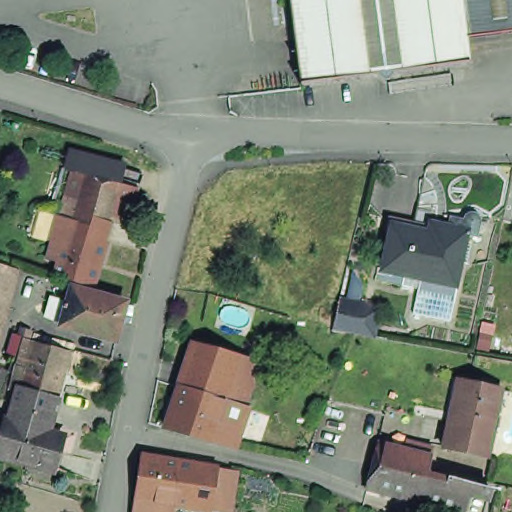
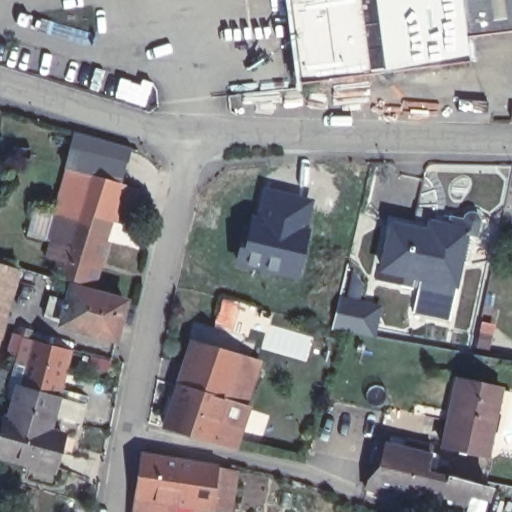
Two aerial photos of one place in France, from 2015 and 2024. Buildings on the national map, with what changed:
unchanged [(293,78),(283,0),(295,0),(306,77),(293,78)]
unchanged [(381,0),(383,78),(377,69),(306,77),(295,0),(381,0)]
unchanged [(468,55),(395,66),(383,78),(381,0),(461,0),(465,31),(468,55)]
unchanged [(461,0),(512,0),(512,25),(465,31),(461,0)]
unchanged [(54,255),(50,254),(43,252),(48,234),(46,230),(50,217),(54,215),(56,208),(70,163),(82,166),(100,171),(118,176),(135,180),(127,213),(109,208),(107,214),(102,234),(91,279),(50,268),(54,255)]
new [(250,211),(253,211),(262,184),(316,198),(299,280),(233,264),(250,211)]
unchanged [(414,281),(382,274),(390,230),(442,241),(445,231),(447,232),(450,221),(462,225),(462,222),(465,221),(476,224),(477,231),(474,243),(463,241),(454,289),(457,289),(449,325),(412,318),(417,292),(412,291),(414,281)]
unchanged [(3,261),(5,254),(15,259),(13,264),(3,306),(2,305),(0,305),(0,261),(3,261)]
unchanged [(105,290),(113,292),(122,294),(112,332),(58,317),(60,315),(43,308),(48,289),(65,294),(70,280),(105,290)]
unchanged [(347,308),(348,303),(356,304),(354,311),(372,315),(370,325),(360,323),(358,333),(333,328),(338,306),(347,308)]
unchanged [(2,305),(0,311),(0,305),(2,305)]
unchanged [(161,420),(174,379),(180,361),(188,334),(235,348),(254,354),(239,400),(225,396),(213,435),(207,433),(161,420)]
unchanged [(48,453),(0,435),(0,427),(2,418),(5,419),(10,402),(15,384),(20,365),(15,363),(22,337),(29,339),(68,350),(55,397),(57,397),(52,414),(47,430),(52,432),(48,453)]
unchanged [(443,435),(446,419),(452,385),(454,376),(497,384),(495,393),(488,430),(485,451),(474,449),(442,443),(443,435)]
unchanged [(60,434),(50,470),(0,456),(0,435),(48,453),(52,432),(60,434)]
unchanged [(436,500),(405,492),(362,480),(368,456),(374,435),(406,443),(407,437),(429,442),(425,460),(413,457),(412,460),(412,464),(442,471),(443,466),(464,470),(468,470),(483,474),(475,511),(457,506),(436,500)]
unchanged [(140,492),(147,450),(167,453),(173,454),(184,456),(237,465),(235,487),(232,504),(216,502),(177,497),(175,512),(137,512),(140,492)]

